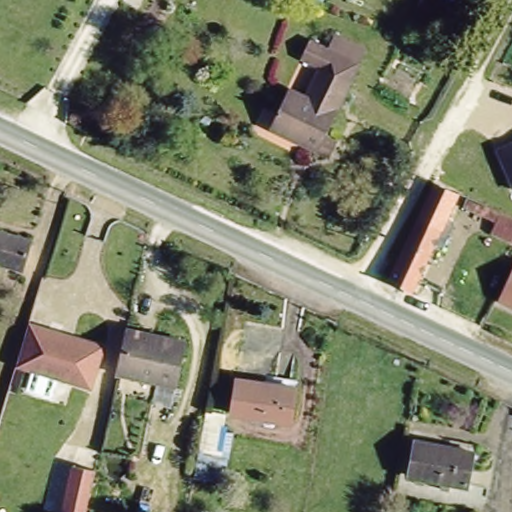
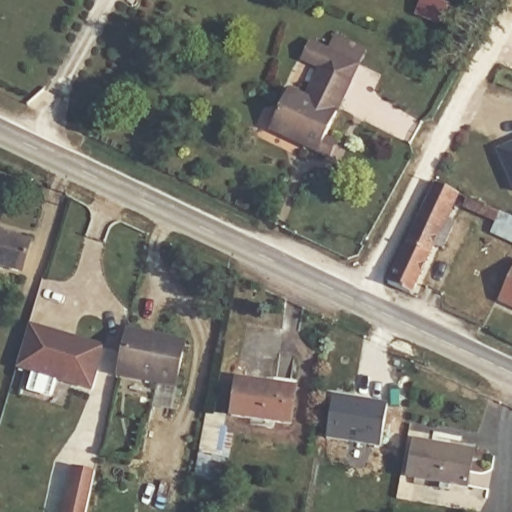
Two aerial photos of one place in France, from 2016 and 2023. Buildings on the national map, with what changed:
unchanged [(294,90),(311,97),(325,68),(310,60),(319,41),(334,49),(341,36),(373,53),(366,66),(330,140),(343,146),(337,158),(276,128),(294,90)]
unchanged [(512,141),(512,182),(497,147),(512,141)]
unchanged [(396,295),(378,285),(425,187),(449,198),(403,298),(396,295)]
unchanged [(512,253),(481,237),(486,228),(453,212),(458,202),(512,227),(512,253)]
unchanged [(31,235),(23,264),(0,258),(0,226),(31,235)]
unchanged [(512,304),(500,298),(512,270),(512,304)]
unchanged [(33,322),(106,346),(95,388),(19,365),(33,322)]
unchanged [(184,341),(176,385),(116,373),(125,330),(184,341)]
unchanged [(296,383),(291,418),(231,409),(236,374),(296,383)]
new [(326,438),(334,393),(388,402),(381,447),(326,438)]
unchanged [(471,448),(464,483),(406,474),(412,438),(471,448)]
unchanged [(75,464),(94,469),(85,512),(65,512),(75,464)]

